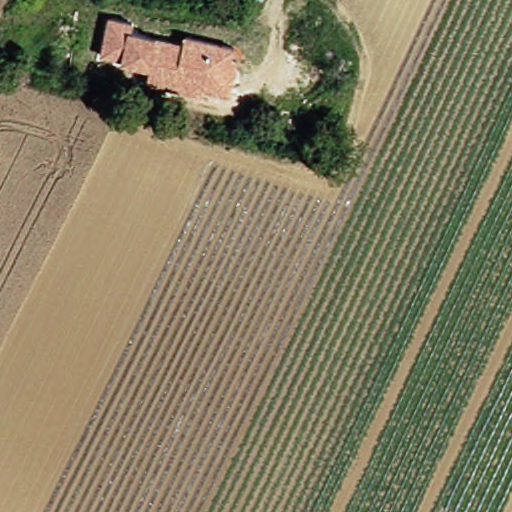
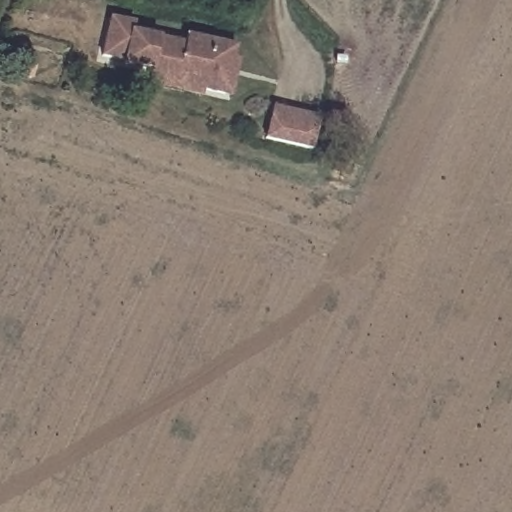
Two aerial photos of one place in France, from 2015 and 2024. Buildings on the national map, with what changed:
unchanged [(123,29),(156,34),(181,43),(184,37),(230,47),(224,87),(150,73),(115,66),(123,29)]
new [(319,116),(312,151),(266,140),(274,105),(319,116)]

